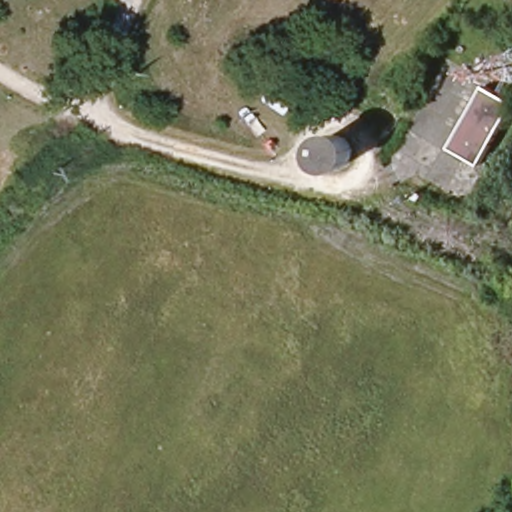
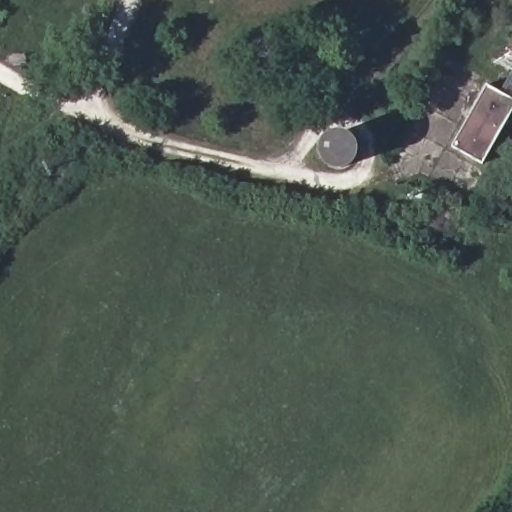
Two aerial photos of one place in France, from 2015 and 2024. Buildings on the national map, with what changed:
unchanged [(512,114),(486,161),(453,144),(490,84),(512,96),(512,114)]

